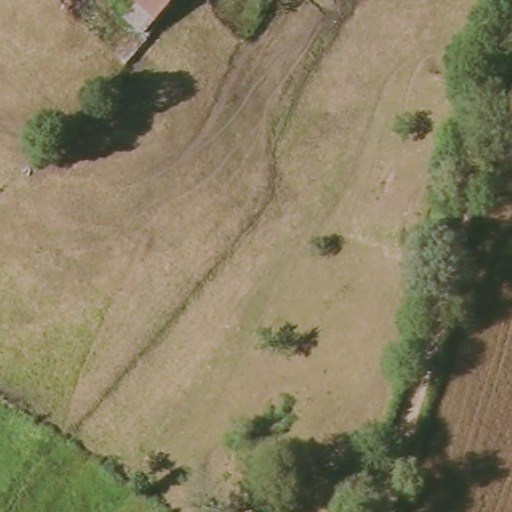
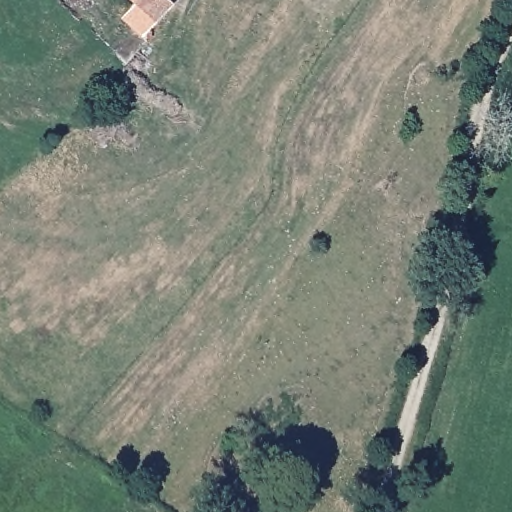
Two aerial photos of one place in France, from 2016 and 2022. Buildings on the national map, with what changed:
unchanged [(117,18),(130,2),(128,0),(163,0),(147,17),(137,35),(117,18)]

